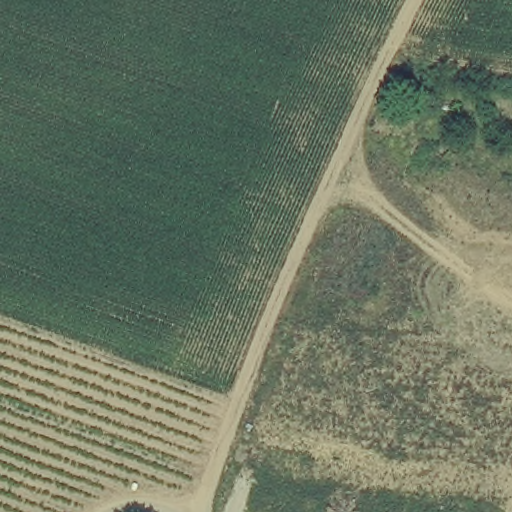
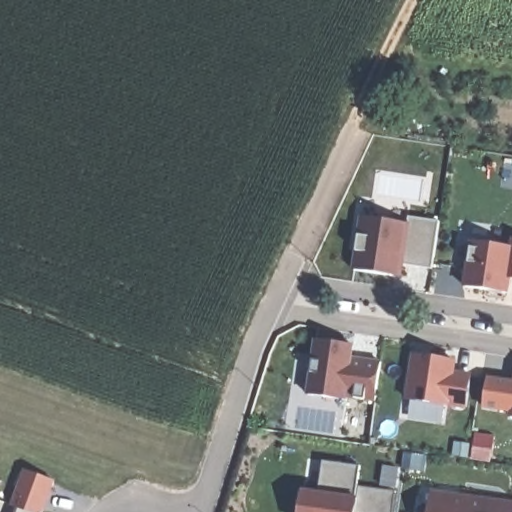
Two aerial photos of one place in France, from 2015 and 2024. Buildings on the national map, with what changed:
new [(402,265),(401,273),(392,272),(392,276),(353,270),(361,217),(407,224),(408,217),(439,222),(432,270),(402,265)]
new [(510,279),(509,292),(464,287),(465,263),(470,263),(472,242),(510,247),(512,239),(512,279),(510,279)]
new [(380,363),(375,402),(345,397),(345,401),(308,395),(315,341),(336,343),(352,346),(352,350),(351,358),(380,363)]
new [(471,376),(466,407),(448,405),(447,406),(408,400),(415,355),(437,358),(455,361),(454,365),(453,373),(471,376)]
new [(512,380),(512,420),(508,420),(510,413),(482,410),(488,377),(512,380)]
new [(354,512),(300,512),(302,491),(318,493),(322,461),(360,466),(354,512)]
new [(12,507),(25,471),(55,481),(45,512),(16,512),(17,508),(12,507)]
new [(396,492),(393,512),(353,512),(357,486),(396,492)]
new [(431,492),(468,498),(512,504),(512,512),(429,512),(431,498),(431,492)]

